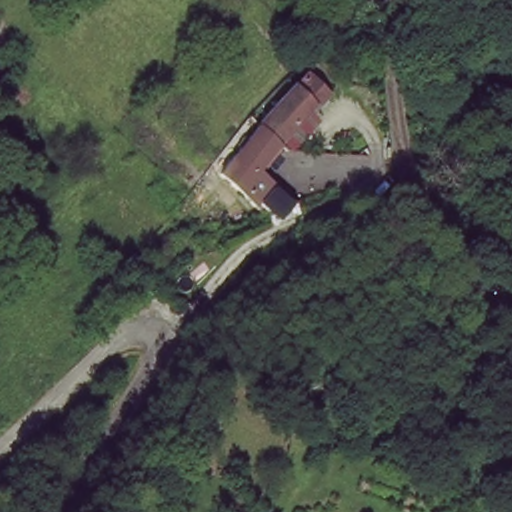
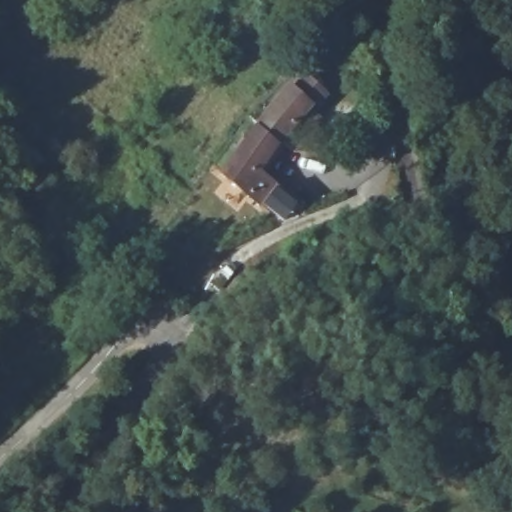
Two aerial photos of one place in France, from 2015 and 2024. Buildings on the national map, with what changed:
unchanged [(281,210),(276,213),(220,165),(255,123),(290,80),(296,83),(305,71),(329,91),(318,104),(313,101),(280,143),(260,169),(300,202),(290,206),(281,210)]

